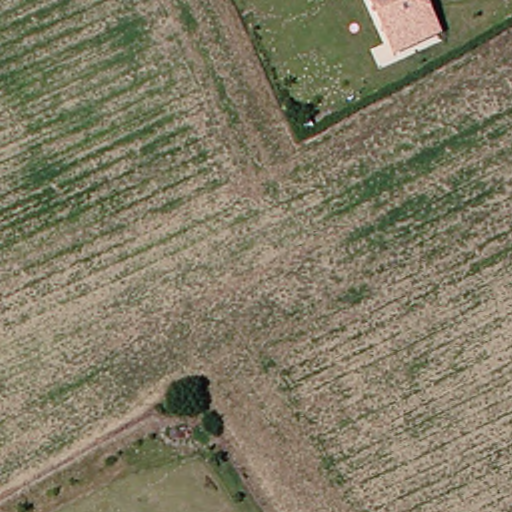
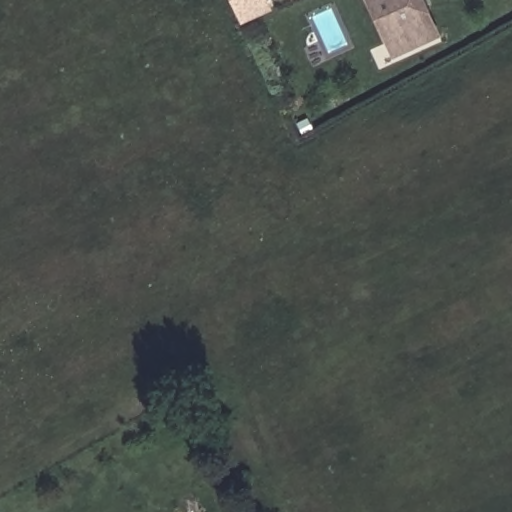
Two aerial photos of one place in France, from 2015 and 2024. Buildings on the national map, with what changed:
new [(270,11),(242,24),(231,0),(266,0),(270,11)]
unchanged [(394,53),(388,40),(370,0),(423,0),(438,32),(394,53)]

